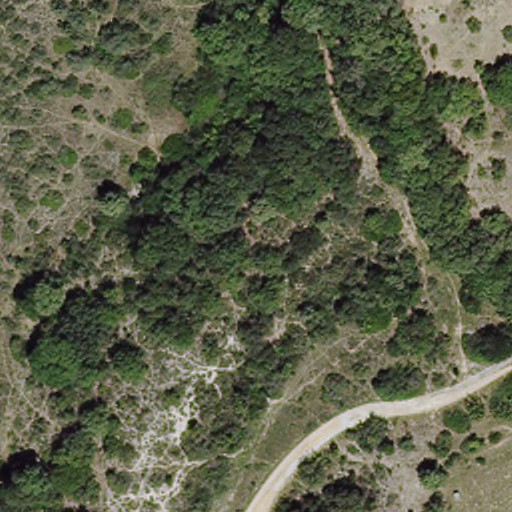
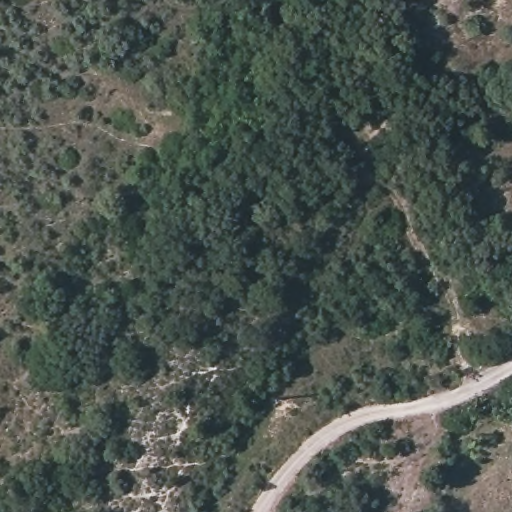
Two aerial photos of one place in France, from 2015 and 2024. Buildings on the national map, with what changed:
[]

